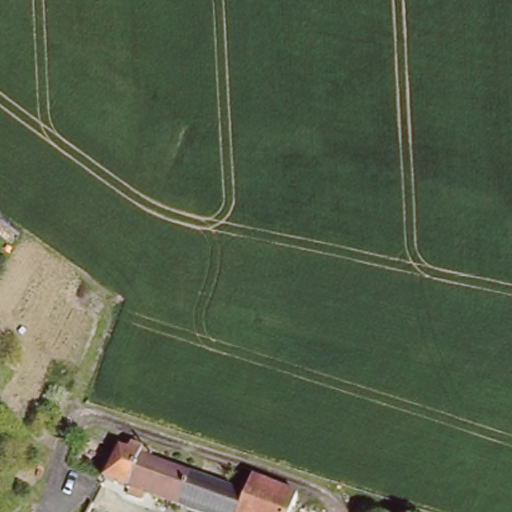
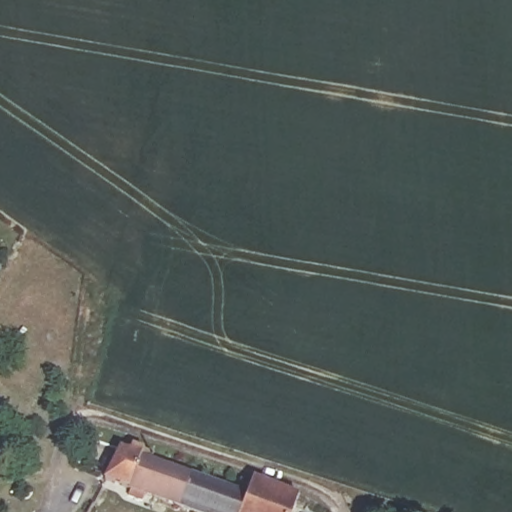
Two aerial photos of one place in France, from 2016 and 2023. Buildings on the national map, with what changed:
unchanged [(234,512),(194,512),(102,483),(119,452),(128,455),(132,446),(149,451),(145,461),(223,487),(242,493),(234,512)]
unchanged [(247,479),(299,494),(294,512),(234,512),(242,493),(247,479)]

